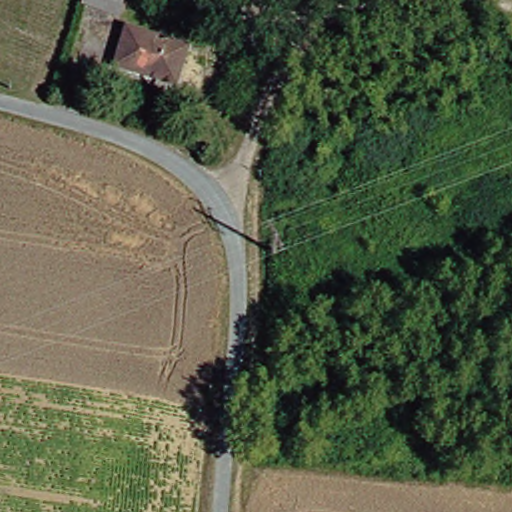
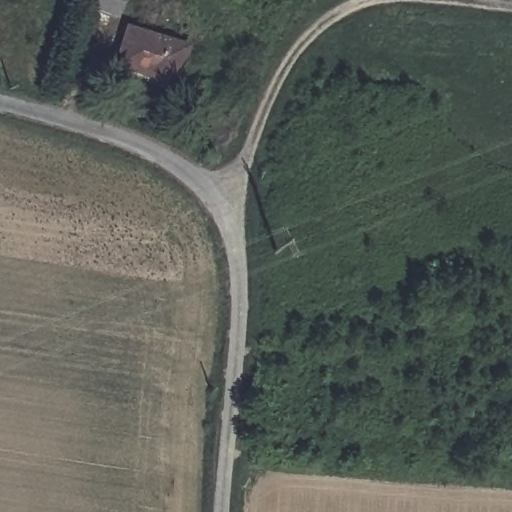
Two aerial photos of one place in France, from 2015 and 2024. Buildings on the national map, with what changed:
unchanged [(92,6),(95,0),(132,0),(124,19),(92,6)]
unchanged [(148,75),(118,65),(130,29),(192,50),(181,80),(150,69),(148,75)]

